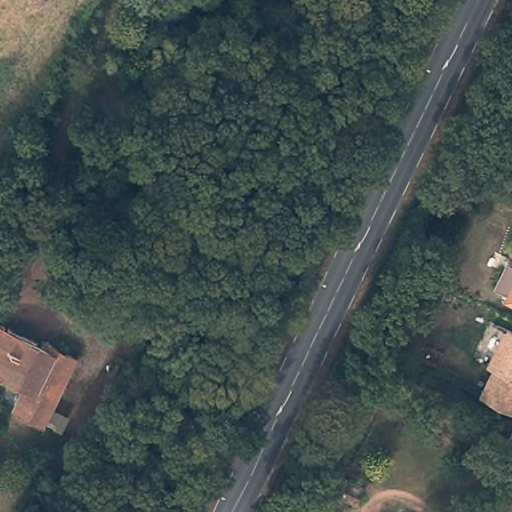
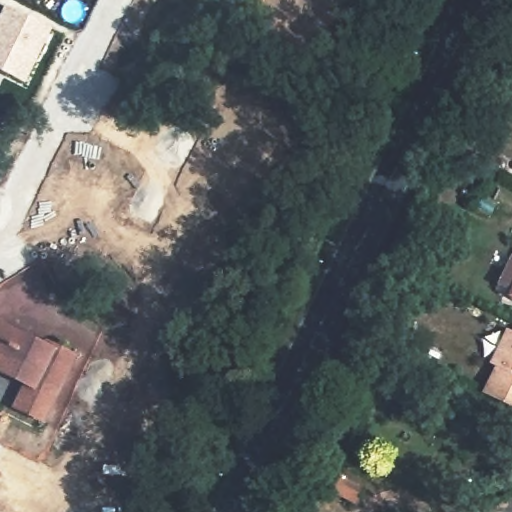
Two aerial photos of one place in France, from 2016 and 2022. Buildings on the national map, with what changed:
new [(48,27),(21,81),(0,71),(0,7),(1,4),(48,27)]
unchanged [(151,50),(170,78),(144,94),(125,67),(151,50)]
unchanged [(103,180),(110,194),(80,208),(73,192),(103,180)]
unchanged [(44,340),(72,353),(42,418),(14,405),(27,378),(0,366),(0,326),(42,344),(44,340)]
unchanged [(485,396),(498,369),(492,366),(510,332),(512,333),(512,409),(485,396)]
unchanged [(341,478),(360,488),(352,504),(333,494),(341,478)]

